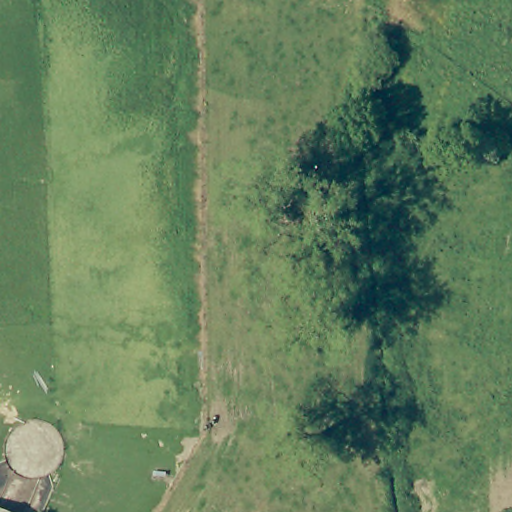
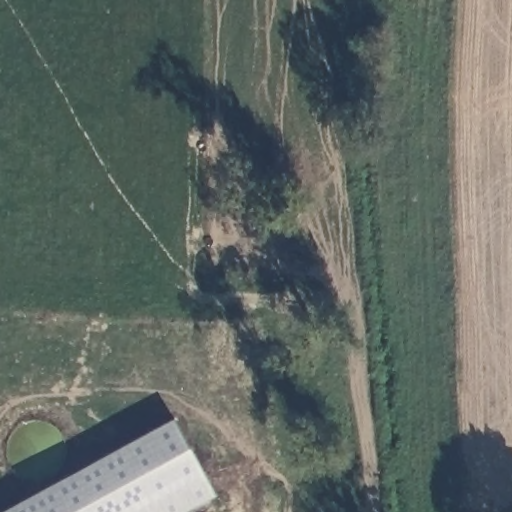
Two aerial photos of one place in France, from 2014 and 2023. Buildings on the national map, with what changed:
new [(0,512),(0,511),(173,415),(216,497),(189,512),(0,512)]
demolished [(13,512),(0,512),(0,506),(13,512)]

